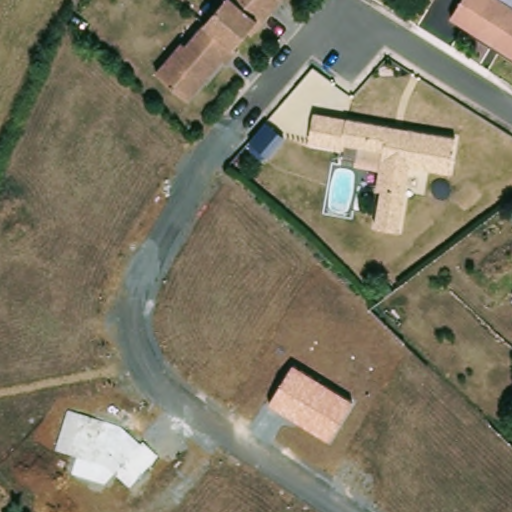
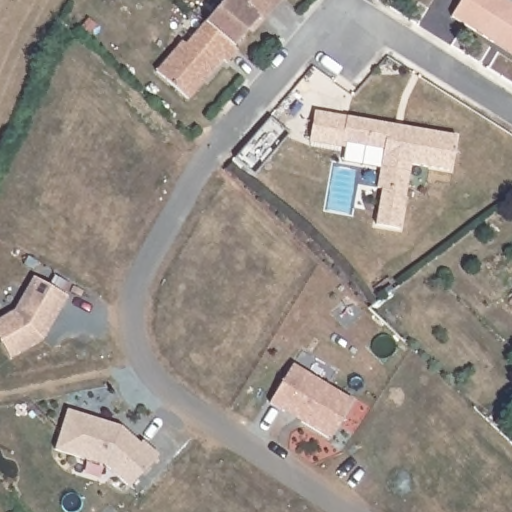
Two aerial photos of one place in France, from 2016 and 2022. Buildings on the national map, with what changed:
unchanged [(211,17),(226,0),(254,0),(271,15),(260,27),(257,24),(240,44),(233,52),(204,26),(211,17)]
unchanged [(283,2),(271,15),(254,0),(281,0),(283,2)]
unchanged [(512,5),(512,55),(450,17),(461,0),(504,0),(512,5)]
unchanged [(181,45),(184,49),(204,26),(233,52),(236,55),(225,67),(221,63),(187,103),(155,76),(181,45)]
unchanged [(447,172),(407,166),(396,231),(373,227),(378,191),(373,190),(379,151),(339,144),(338,149),(306,144),(312,114),(343,120),(453,138),(447,172)]
new [(68,297),(42,342),(9,359),(0,342),(0,319),(13,311),(33,277),(68,297)]
unchanged [(269,403),(294,365),(352,400),(329,440),(269,403)]
new [(121,427),(140,443),(143,441),(159,455),(130,487),(106,466),(55,450),(67,410),(121,427)]

